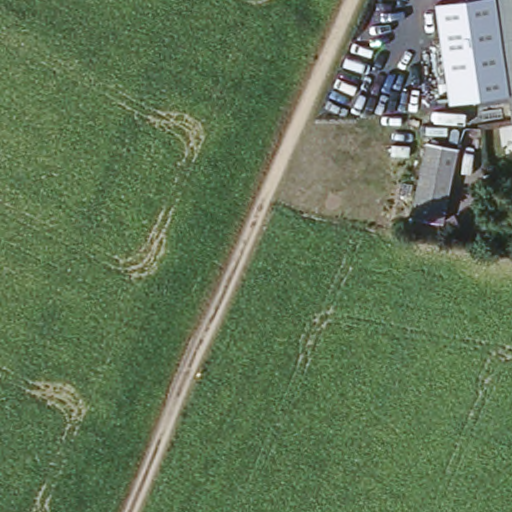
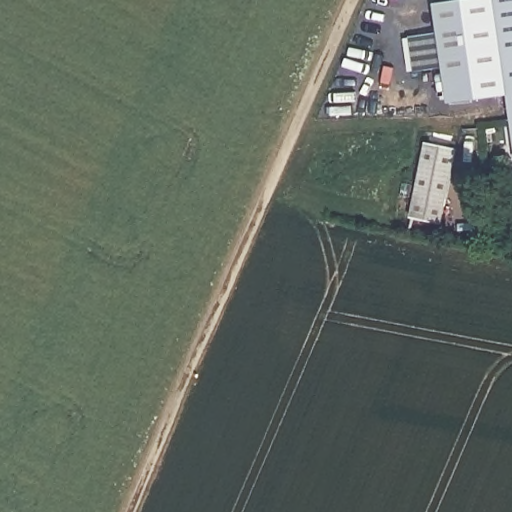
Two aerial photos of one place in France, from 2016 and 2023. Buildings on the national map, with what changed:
unchanged [(436,3),(455,0),(493,0),(507,96),(450,103),(436,3)]
unchanged [(507,96),(493,0),(512,0),(512,129),(507,96)]
unchanged [(457,144),(442,221),(407,216),(423,139),(457,144)]

